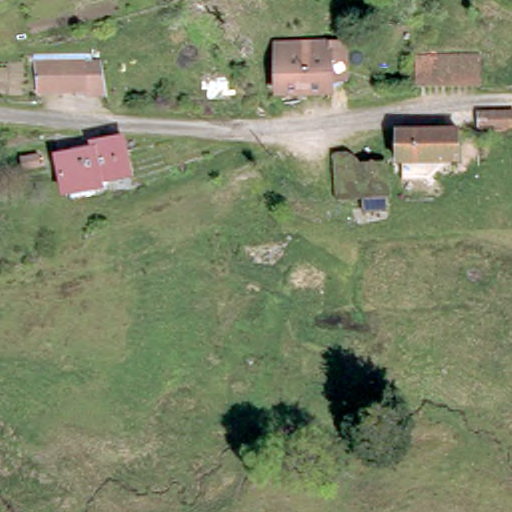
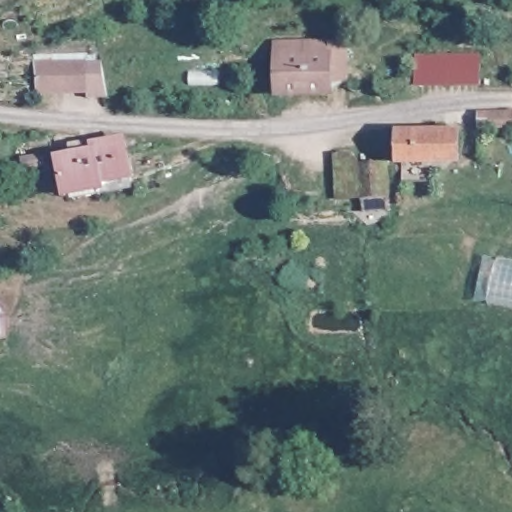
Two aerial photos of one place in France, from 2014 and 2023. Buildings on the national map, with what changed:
unchanged [(277,35),(343,33),(347,78),(282,85),(280,85),(277,35)]
unchanged [(412,57),(477,52),(480,79),(415,82),(412,57)]
unchanged [(107,92),(86,96),(85,93),(40,101),(35,70),(99,57),(107,92)]
unchanged [(510,124),(478,125),(478,110),(490,110),(510,110),(510,120),(510,124)]
unchanged [(65,201),(52,163),(68,158),(67,151),(88,142),(118,133),(122,142),(122,144),(132,171),(99,183),(102,189),(65,201)]
unchanged [(458,142),(458,166),(402,170),(402,142),(458,142)]
unchanged [(369,198),(368,169),(378,169),(388,169),(389,179),(390,197),(369,198)]
new [(497,256),(512,260),(512,304),(487,299),(497,256)]

